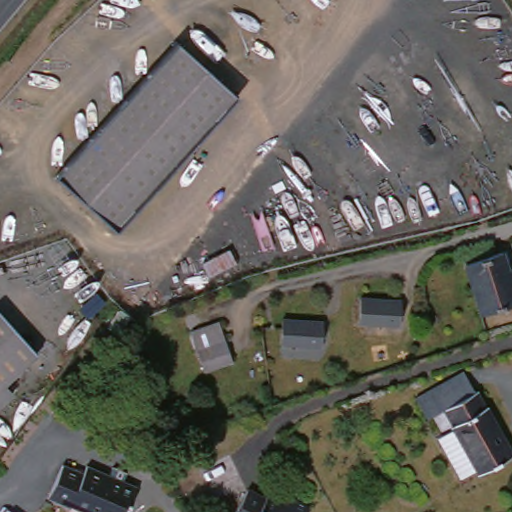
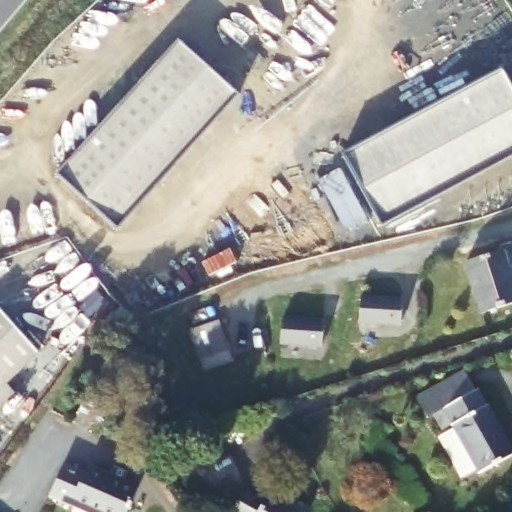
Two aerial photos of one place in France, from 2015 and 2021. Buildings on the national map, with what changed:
unchanged [(181,42),(242,97),(120,232),(59,177),(181,42)]
new [(512,83),(512,159),(384,229),(344,157),(505,70),(512,83)]
unchanged [(503,254),(512,282),(512,305),(480,315),(465,266),(503,254)]
unchanged [(399,310),(398,331),(361,329),(364,307),(399,310)]
unchanged [(47,370),(0,412),(0,318),(47,370)]
unchanged [(323,328),(321,351),(282,349),(284,326),(323,328)]
unchanged [(190,343),(219,333),(231,372),(203,382),(190,343)]
unchanged [(485,403),(488,402),(496,418),(498,417),(512,442),(512,473),(490,485),(487,480),(471,490),(448,449),(463,441),(461,437),(453,441),(444,426),(437,430),(425,409),(474,383),(485,403)]
unchanged [(98,400),(113,407),(98,436),(84,430),(98,400)]
unchanged [(64,465),(85,474),(89,466),(115,477),(114,479),(138,489),(128,512),(84,512),(71,507),(70,509),(48,500),(64,465)]
unchanged [(264,505),(278,512),(236,512),(243,500),(262,510),(264,505)]
unchanged [(295,512),(287,512),(289,509),(295,512)]

